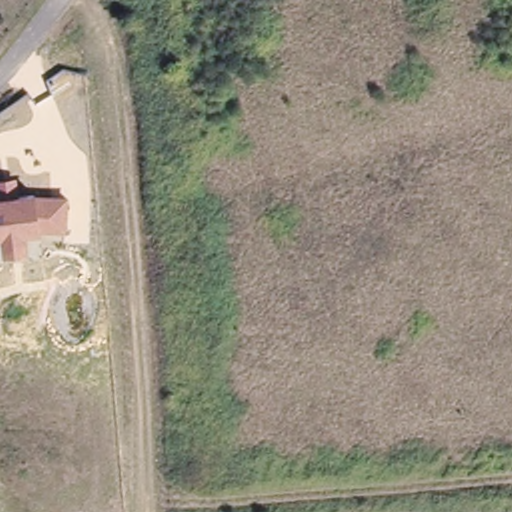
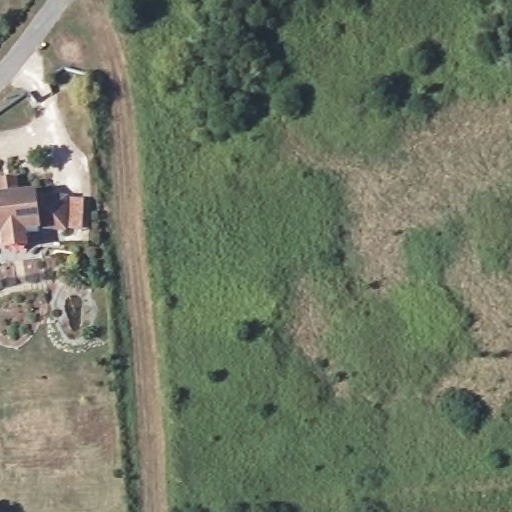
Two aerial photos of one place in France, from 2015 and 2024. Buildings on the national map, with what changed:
unchanged [(2,235),(0,235),(0,198),(34,193),(40,196),(66,196),(84,196),(83,227),(66,227),(39,226),(39,229),(24,232),(26,246),(4,249),(2,235)]

